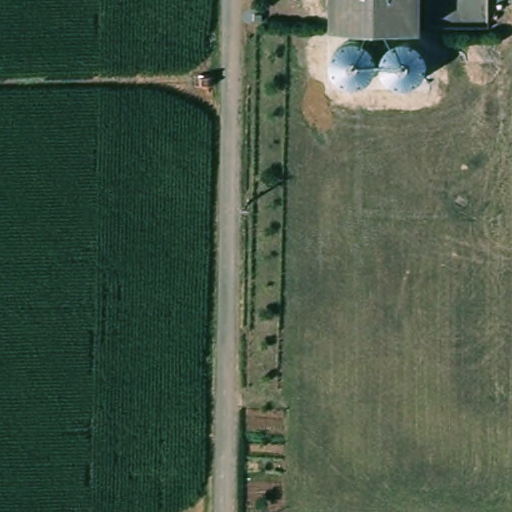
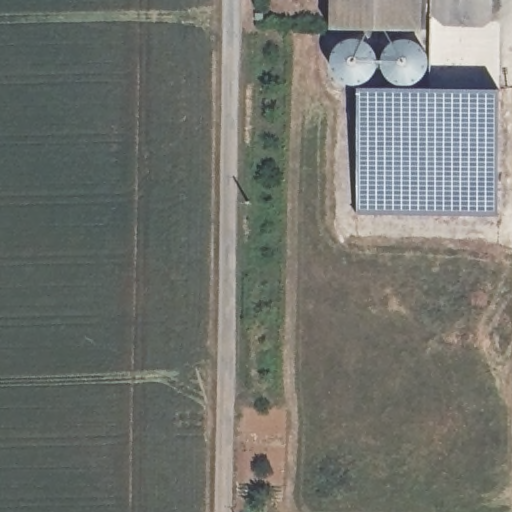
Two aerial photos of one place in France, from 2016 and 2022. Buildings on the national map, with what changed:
unchanged [(331,0),(421,0),(420,31),(331,30),(331,0)]
unchanged [(424,50),(428,57),(425,74),(420,82),(411,86),(350,87),(343,84),(338,80),(333,74),(331,66),(331,57),(334,49),(340,43),(348,40),(412,41),(424,50)]
new [(356,214),(358,89),(498,91),(496,216),(356,214)]

